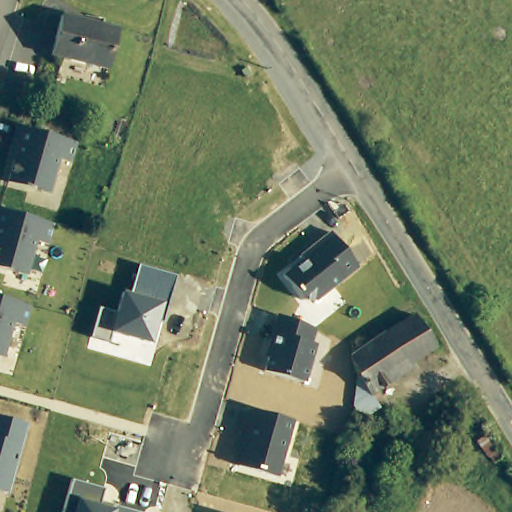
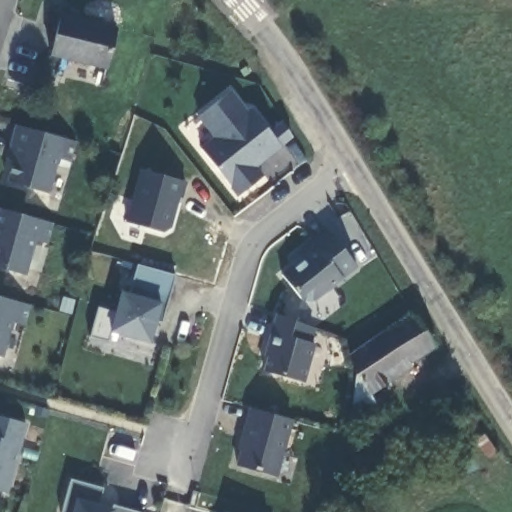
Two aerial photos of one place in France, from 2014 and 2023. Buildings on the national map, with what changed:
unchanged [(118,27),(107,69),(55,56),(65,15),(118,27)]
new [(251,106),(282,146),(256,167),(264,175),(236,196),(199,147),(212,136),(197,117),(231,89),(247,110),(251,106)]
unchanged [(74,162),(61,159),(52,194),(10,182),(16,160),(10,158),(19,125),(29,127),(80,142),(74,162)]
new [(141,167),(187,181),(183,199),(179,199),(171,227),(161,232),(125,221),(141,167)]
unchanged [(47,244),(35,241),(25,276),(0,268),(0,208),(53,224),(47,244)]
unchanged [(298,260),(296,256),(330,231),(356,267),(315,300),(303,300),(282,275),(298,260)]
unchanged [(98,307),(115,312),(122,291),(129,293),(139,265),(175,275),(161,322),(157,320),(150,342),(110,331),(108,340),(91,336),(98,307)]
unchanged [(24,327),(11,323),(1,358),(0,358),(0,298),(30,306),(24,327)]
unchanged [(275,315),(315,328),(309,343),(315,345),(304,382),(262,371),(266,357),(263,356),(275,315)]
unchanged [(432,348),(411,362),(413,367),(375,394),(380,407),(353,424),(346,417),(352,412),(350,397),(357,372),(349,356),(369,344),(412,317),(432,348)]
unchanged [(236,465),(251,411),(292,420),(276,476),(236,465)]
unchanged [(0,416),(26,423),(7,493),(0,491),(0,416)]
unchanged [(104,488),(100,505),(115,508),(116,505),(140,512),(61,512),(70,480),(104,488)]

